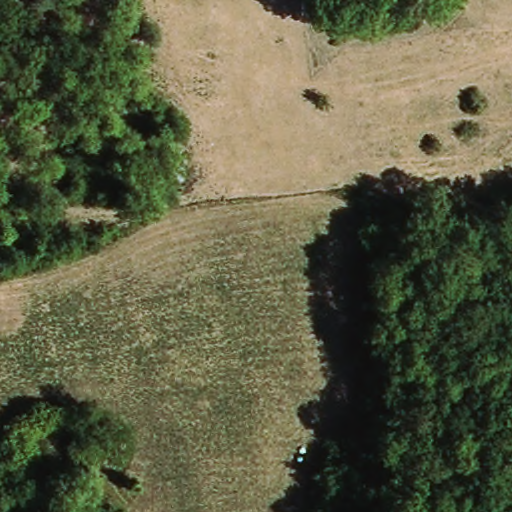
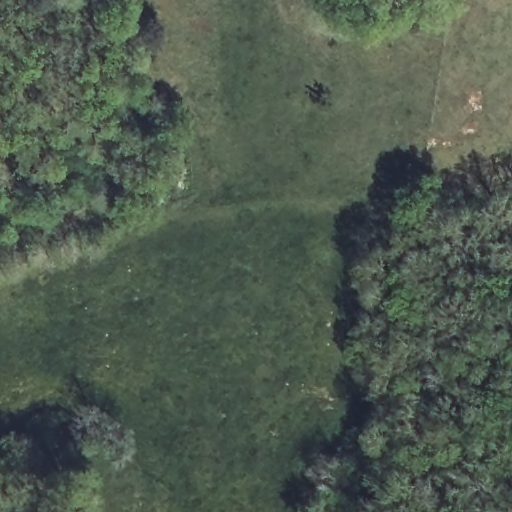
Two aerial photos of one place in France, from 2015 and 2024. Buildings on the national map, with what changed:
[]

